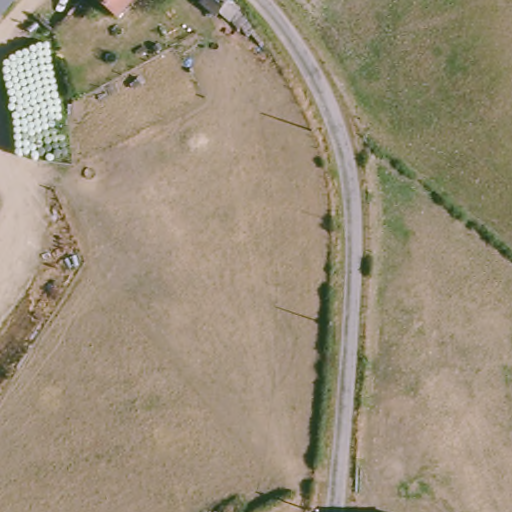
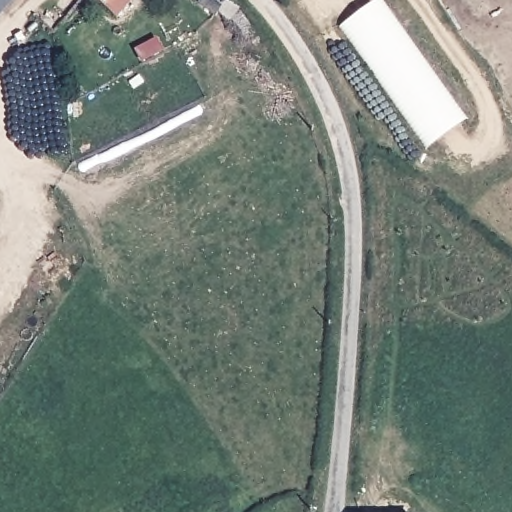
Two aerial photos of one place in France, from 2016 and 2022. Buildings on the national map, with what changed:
unchanged [(0,26),(0,0),(24,0),(18,7),(0,26)]
unchanged [(96,0),(137,0),(120,22),(96,0)]
unchanged [(202,4),(204,0),(235,0),(235,1),(243,11),(229,24),(202,4)]
new [(384,0),(467,117),(426,147),(338,25),(373,0),(384,0)]
unchanged [(0,206),(0,201),(2,202),(0,206)]

